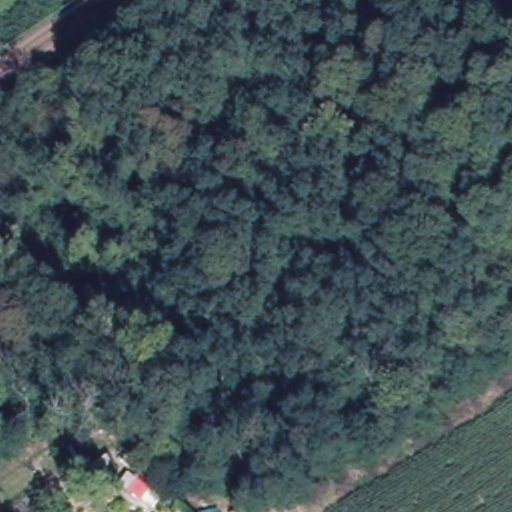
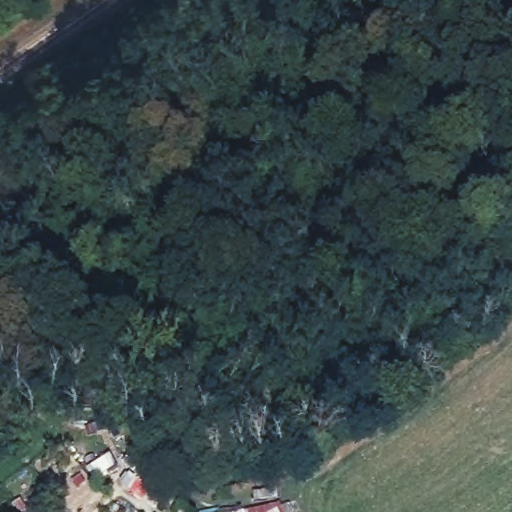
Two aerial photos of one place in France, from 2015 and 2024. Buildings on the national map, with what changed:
unchanged [(286,512),(248,512),(282,505),(286,512)]

